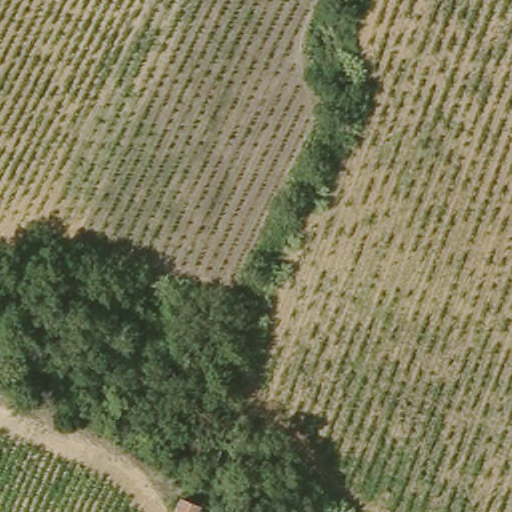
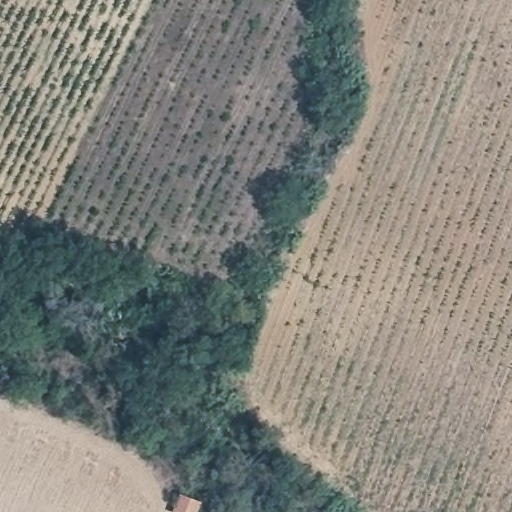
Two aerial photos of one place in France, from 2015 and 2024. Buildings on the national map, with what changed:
unchanged [(201,512),(178,512),(184,498),(203,507),(201,512)]

